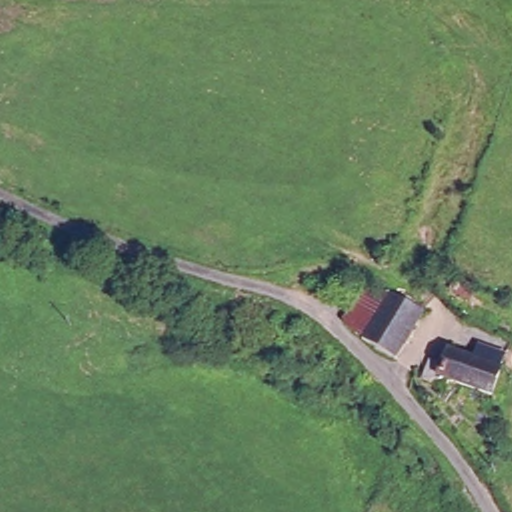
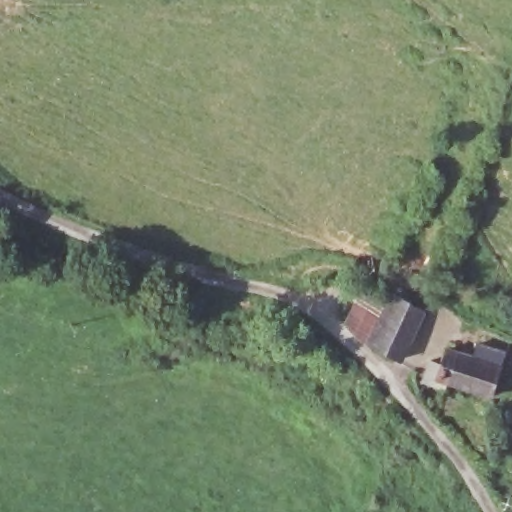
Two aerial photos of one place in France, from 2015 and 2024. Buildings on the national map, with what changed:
unchanged [(477,314),(439,291),(454,271),(489,292),(477,314)]
unchanged [(356,330),(379,288),(392,294),(401,299),(376,347),(356,330)]
unchanged [(401,299),(404,296),(437,314),(411,362),(376,347),(401,299)]
unchanged [(506,363),(496,391),(458,378),(454,388),(424,378),(429,358),(444,363),(450,346),(466,351),(471,334),(508,348),(506,363)]

